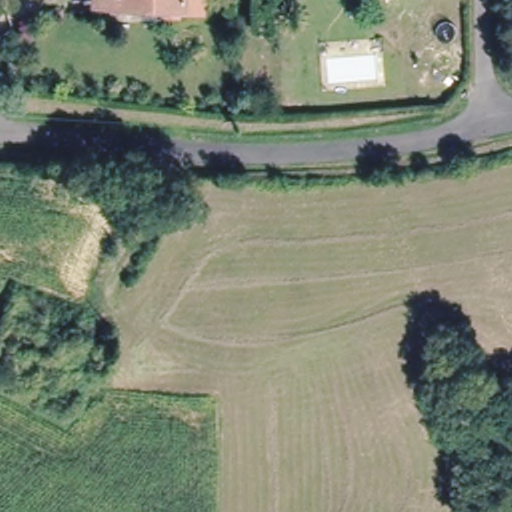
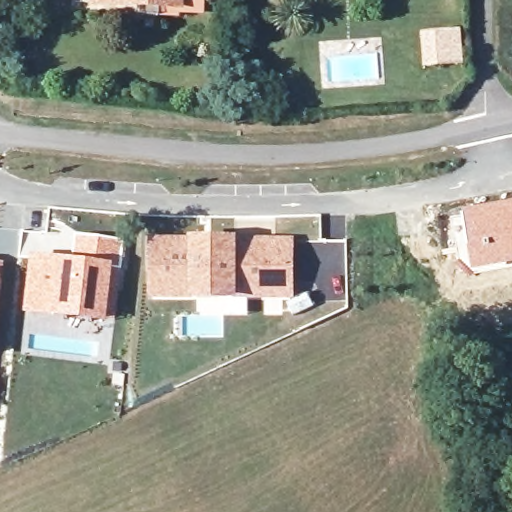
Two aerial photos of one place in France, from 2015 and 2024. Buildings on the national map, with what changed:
unchanged [(144,1),(124,0),(203,0),(203,6),(181,6),(181,11),(162,11),(162,13),(143,12),(144,1)]
new [(461,28),(465,65),(423,68),(420,32),(461,28)]
new [(512,202),(512,268),(473,273),(463,212),(512,202)]
new [(150,236),(296,235),(295,298),(149,299),(150,236)]
new [(55,271),(55,262),(70,264),(74,237),(122,242),(119,271),(107,270),(102,321),(50,315),(50,322),(29,320),(35,269),(55,271)]
new [(0,288),(0,263),(3,264),(0,288)]
demolished [(52,399),(0,377),(0,333),(15,298),(81,325),(52,399)]

